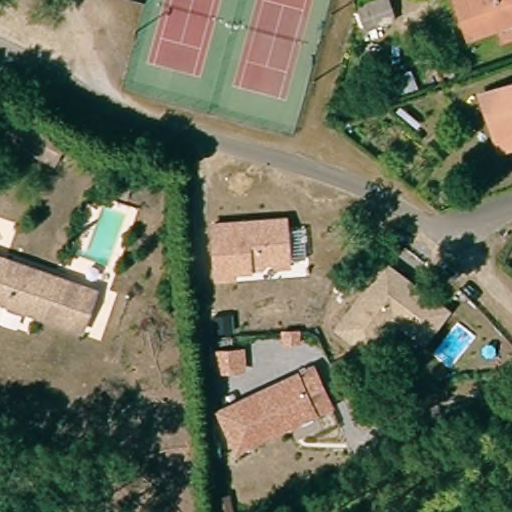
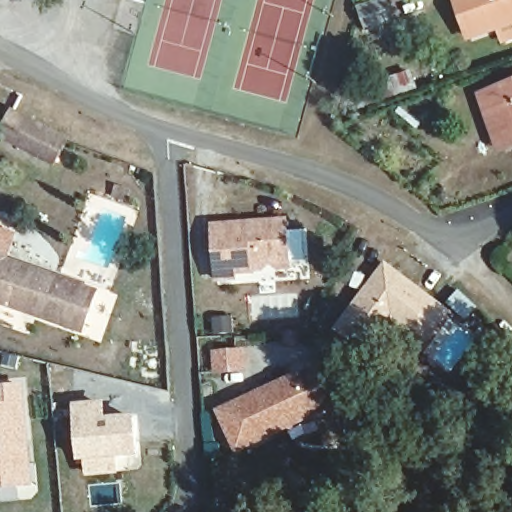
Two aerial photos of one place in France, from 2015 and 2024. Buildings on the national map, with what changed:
unchanged [(368,25),(361,5),(375,0),(393,0),(398,15),(368,25)]
unchanged [(492,24),(462,34),(450,0),(512,0),(512,32),(497,38),(492,24)]
unchanged [(398,91),(364,102),(361,89),(394,79),(398,91)]
unchanged [(506,136),(491,91),(512,84),(512,134),(506,136)]
unchanged [(506,136),(512,134),(512,147),(497,153),(477,96),(491,91),(506,136)]
unchanged [(0,139),(0,123),(7,109),(60,138),(47,164),(0,139)]
unchanged [(129,196),(115,192),(119,183),(132,188),(129,196)]
unchanged [(287,215),(291,269),(254,272),(254,275),(235,277),(236,280),(212,282),(209,220),(287,215)]
new [(0,228),(17,234),(6,264),(0,262),(0,228)]
unchanged [(410,329),(398,320),(386,322),(366,349),(335,325),(384,261),(433,299),(444,307),(422,338),(410,329)]
unchanged [(0,307),(0,262),(88,293),(74,333),(0,307)]
unchanged [(245,366),(219,368),(218,349),(244,347),(245,366)]
unchanged [(239,447),(221,407),(315,364),(333,403),(239,447)]
new [(32,488),(0,490),(0,386),(23,384),(32,488)]
new [(73,404),(104,402),(105,418),(135,416),(138,456),(115,457),(117,474),(84,477),(82,460),(78,461),(73,404)]

